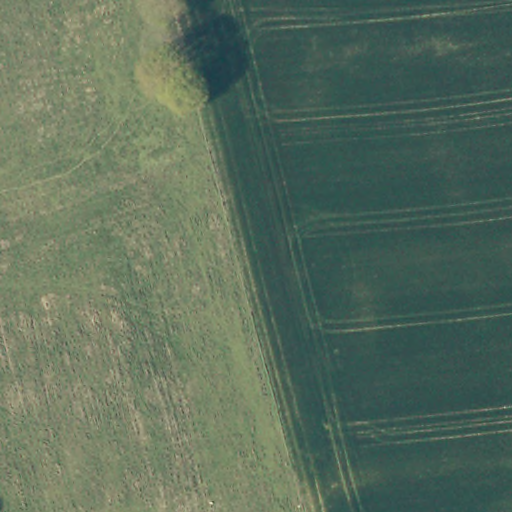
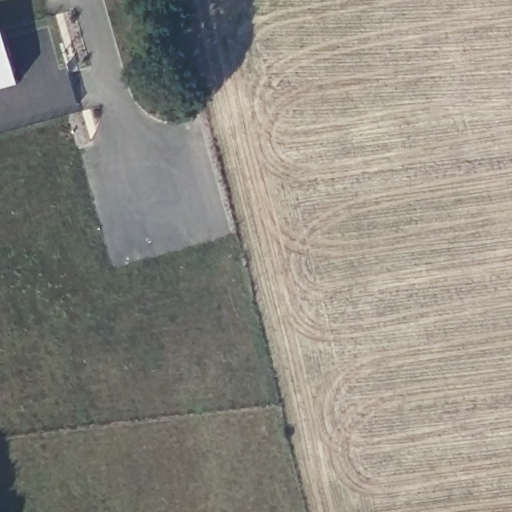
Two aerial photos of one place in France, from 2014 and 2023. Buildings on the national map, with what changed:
new [(18,84),(0,89),(0,31),(4,31),(18,84)]

